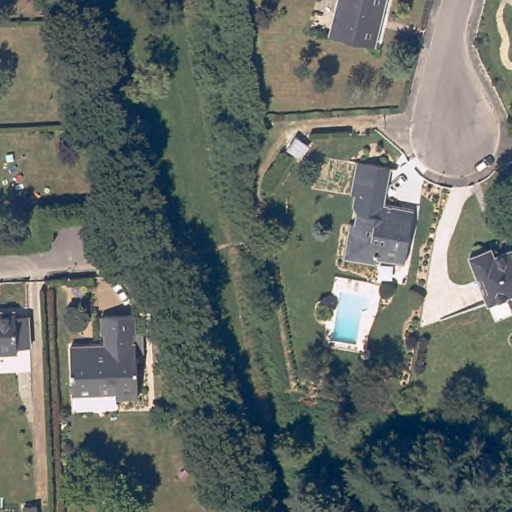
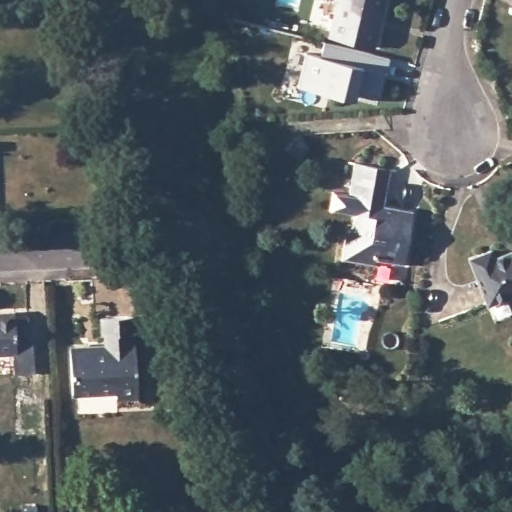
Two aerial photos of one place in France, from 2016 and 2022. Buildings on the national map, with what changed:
unchanged [(372,47),(330,36),(339,0),(384,0),(372,47)]
new [(307,52),(323,55),(326,41),(389,57),(380,96),(357,91),(355,98),(300,84),(307,52)]
unchanged [(404,259),(377,254),(376,260),(345,255),(350,219),(354,220),(357,208),(352,204),(355,192),(352,191),(357,158),(384,162),(391,163),(384,201),(413,206),(404,259)]
unchanged [(470,258),(490,250),(493,257),(512,249),(512,294),(488,303),(479,281),(470,258)]
unchanged [(29,317),(30,348),(16,349),(17,354),(0,354),(0,313),(15,313),(15,317),(29,317)]
unchanged [(106,341),(106,331),(103,331),(103,314),(135,313),(136,329),(133,330),(134,339),(136,339),(139,392),(116,394),(116,387),(73,389),(71,343),(92,342),(106,341)]
unchanged [(36,509),(36,512),(26,512),(26,509),(36,509)]

